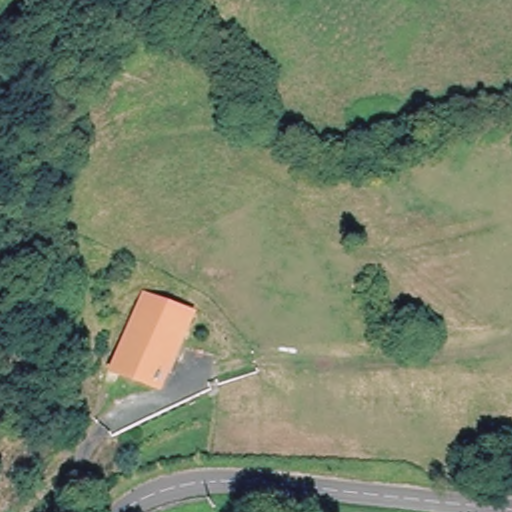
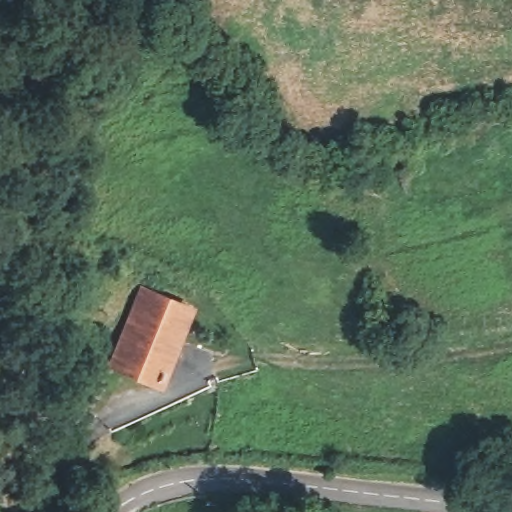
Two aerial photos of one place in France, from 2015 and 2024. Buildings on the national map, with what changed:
unchanged [(187,313),(158,380),(112,362),(145,294),(187,313)]

